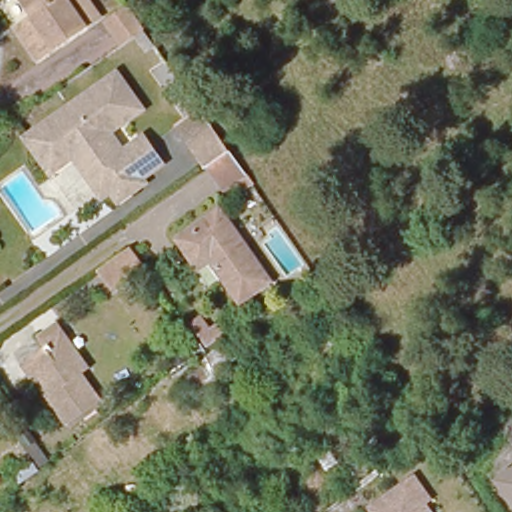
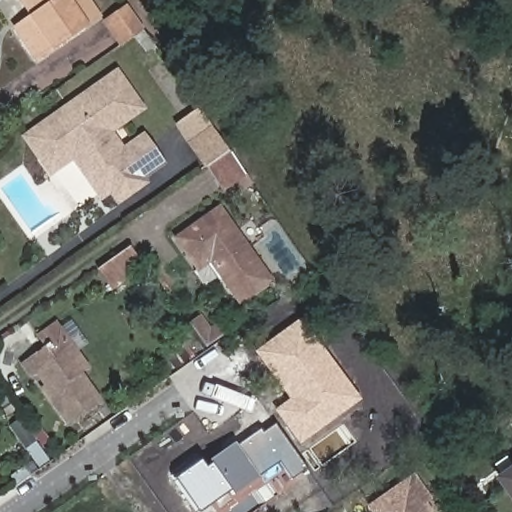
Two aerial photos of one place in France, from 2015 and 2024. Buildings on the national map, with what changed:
unchanged [(89,0),(99,15),(36,59),(15,29),(33,16),(22,0),(89,0)]
unchanged [(121,44),(105,22),(128,6),(144,28),(121,44)]
unchanged [(101,182),(77,142),(72,140),(64,147),(52,156),(44,144),(29,124),(118,60),(142,94),(107,119),(123,141),(146,126),(163,149),(141,165),(144,170),(132,179),(121,186),(112,174),(101,182)]
unchanged [(187,141),(200,132),(187,115),(198,107),(245,176),(222,192),(187,141)]
unchanged [(172,239),(215,209),(265,279),(235,301),(206,260),(193,269),(172,239)]
unchanged [(125,250),(137,267),(107,288),(95,270),(125,250)]
new [(300,319),(360,399),(299,446),(273,411),(288,399),(254,353),(300,319)]
unchanged [(46,384),(39,373),(34,376),(23,361),(45,346),(42,343),(61,329),(67,337),(89,368),(81,374),(99,399),(65,422),(48,397),(41,387),(46,384)]
unchanged [(195,342),(209,333),(215,343),(201,352),(195,342)]
unchanged [(219,349),(229,363),(191,390),(181,376),(219,349)]
unchanged [(10,426),(20,419),(33,438),(23,445),(10,426)]
new [(195,457),(205,468),(210,464),(208,461),(234,443),(236,446),(259,431),(261,434),(273,425),(305,469),(290,479),(278,462),(258,474),(258,477),(233,496),(229,491),(197,512),(195,512),(170,477),(195,457)]
unchanged [(31,457),(41,450),(48,460),(38,467),(31,457)]
unchanged [(512,464),(512,504),(493,478),(512,464)]
unchanged [(367,511),(364,507),(409,475),(426,499),(417,505),(422,512),(369,512),(367,511)]

